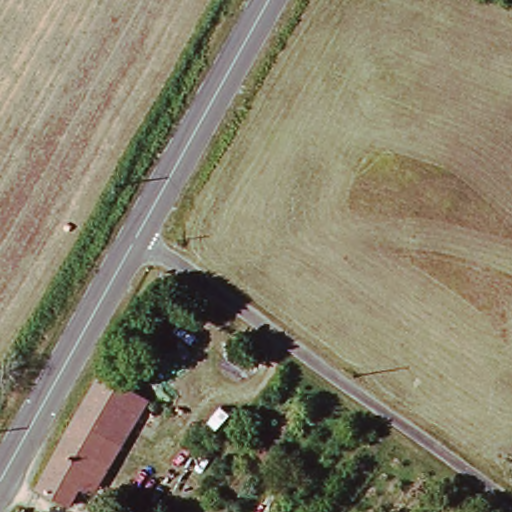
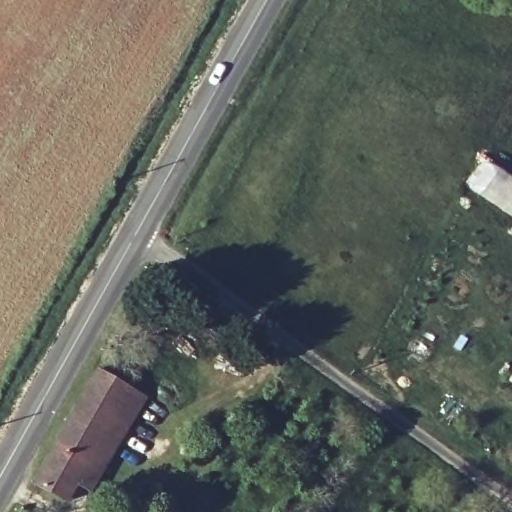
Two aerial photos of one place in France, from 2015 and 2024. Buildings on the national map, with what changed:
unchanged [(39,481),(104,368),(149,393),(106,470),(93,463),(72,499),(39,481)]

